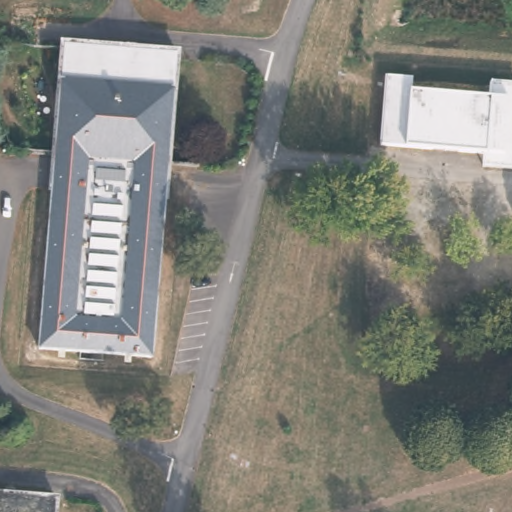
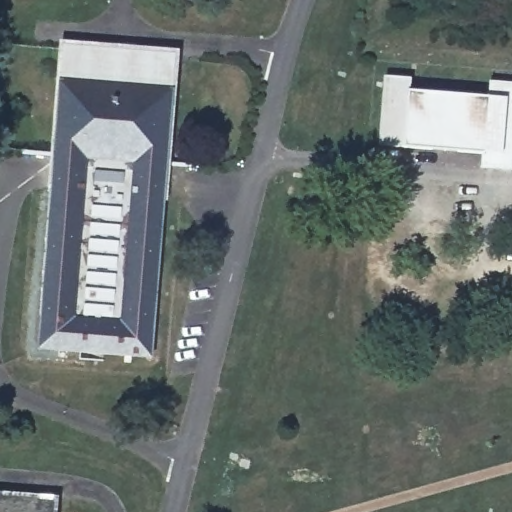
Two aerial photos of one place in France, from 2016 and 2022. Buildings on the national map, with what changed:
unchanged [(174,86),(163,86),(155,189),(164,190),(151,352),(38,342),(50,181),(59,180),(68,78),(59,77),(62,40),(177,47),(174,86)]
unchanged [(479,166),(481,151),(380,140),(384,77),(408,79),(408,95),(486,102),(487,87),(512,89),(512,148),(512,154),(510,168),(479,166)]
unchanged [(0,492),(55,497),(54,512),(0,512),(0,492)]

